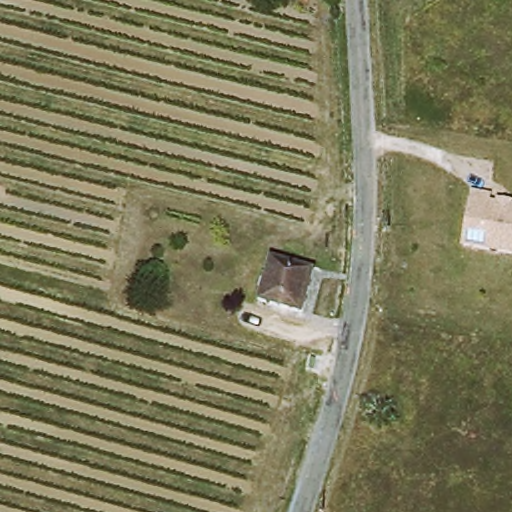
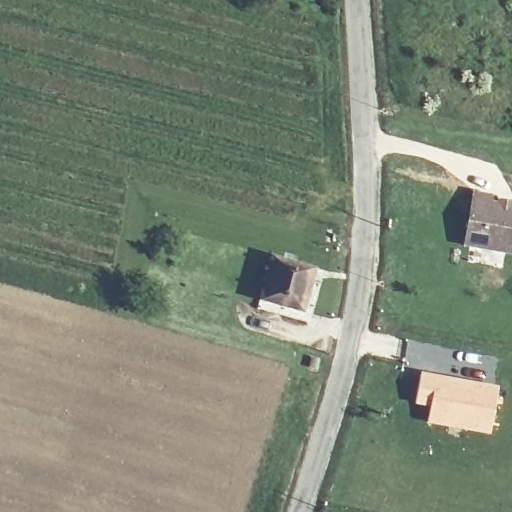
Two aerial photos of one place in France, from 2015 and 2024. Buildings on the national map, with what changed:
unchanged [(461,246),(471,188),(492,192),(490,201),(496,202),(497,196),(512,198),(512,203),(512,206),(512,257),(461,246)]
unchanged [(306,311),(265,301),(276,257),(317,267),(306,311)]
new [(430,406),(415,403),(420,375),(495,390),(488,431),(428,422),(430,406)]

